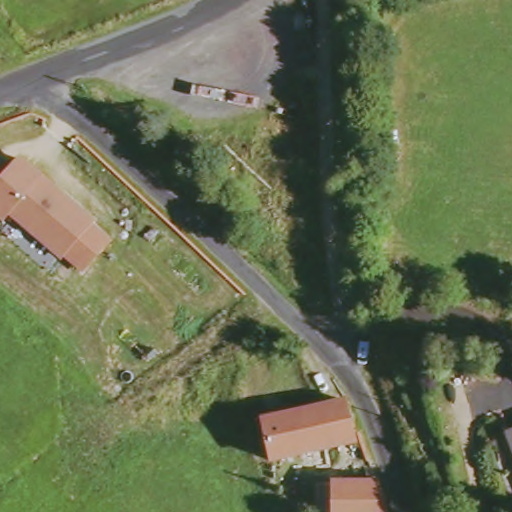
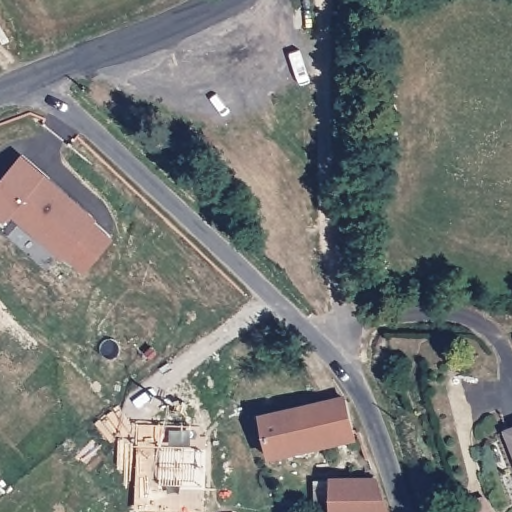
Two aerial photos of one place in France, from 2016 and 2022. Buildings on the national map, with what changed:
unchanged [(95,222),(62,260),(10,217),(3,225),(0,222),(0,181),(22,157),(95,222)]
unchanged [(345,396),(355,439),(271,458),(261,418),(345,396)]
unchanged [(512,433),(512,446),(508,435),(512,433)]
unchanged [(330,482),(375,480),(386,512),(333,512),(330,482)]
unchanged [(466,506),(486,499),(492,512),(468,512),(466,506)]

